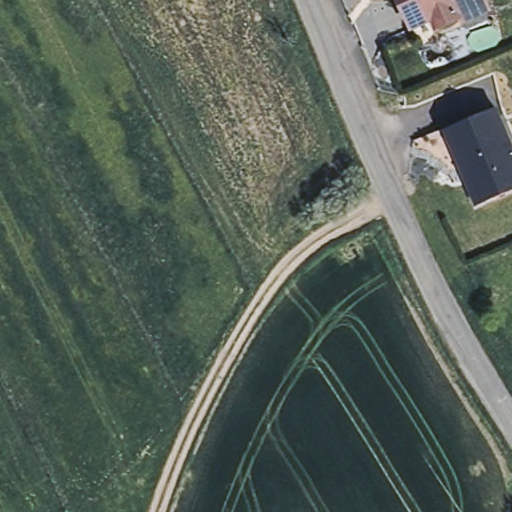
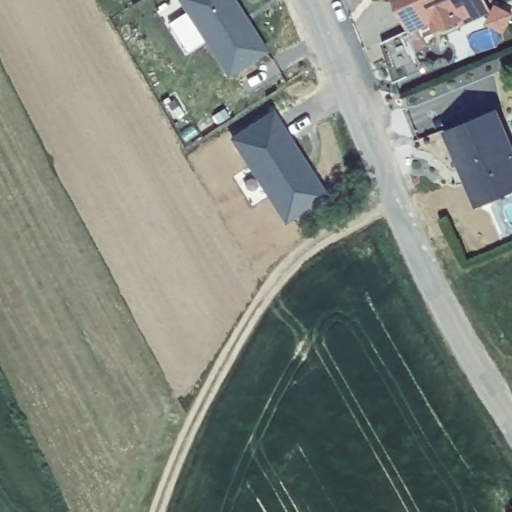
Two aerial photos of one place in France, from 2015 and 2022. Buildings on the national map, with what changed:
new [(271,54),(230,77),(181,0),(235,0),(271,54)]
unchanged [(451,20),(431,29),(427,19),(407,29),(394,0),(475,0),(479,7),(451,20)]
new [(277,112),(329,196),(287,222),(233,140),(277,112)]
unchanged [(512,146),(512,196),(479,210),(470,187),(448,134),(455,131),(499,113),(512,146)]

